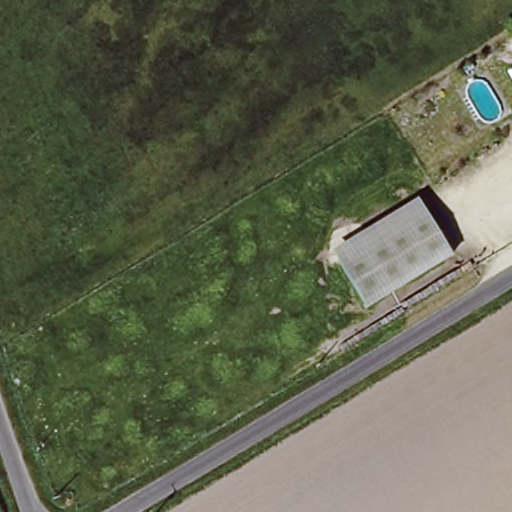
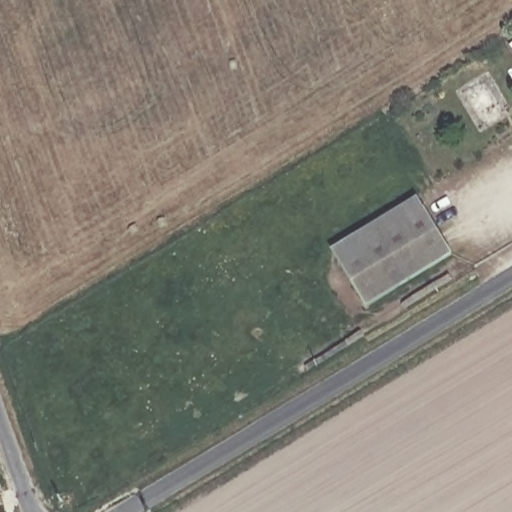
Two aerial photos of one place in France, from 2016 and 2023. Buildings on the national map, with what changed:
unchanged [(419,200),(452,257),(369,307),(335,250),(419,200)]

